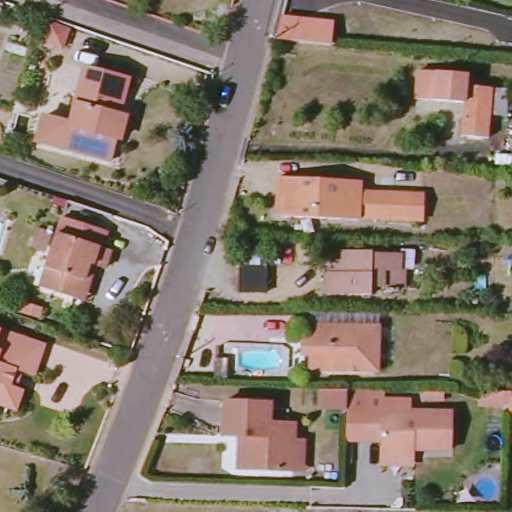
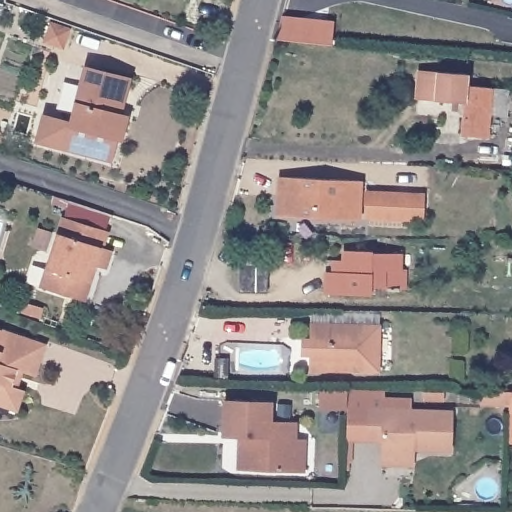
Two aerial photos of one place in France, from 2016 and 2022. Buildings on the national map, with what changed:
unchanged [(77,31),(80,33),(74,51),(55,45),(62,26),(77,31)]
unchanged [(490,134),(465,133),(465,104),(415,100),(419,70),(465,75),(466,84),(492,86),(512,87),(512,109),(512,116),(491,116),(490,134)]
unchanged [(124,83),(112,119),(127,123),(119,144),(69,128),(88,71),(124,83)]
unchanged [(280,178),(363,183),(362,222),(279,217),(280,178)]
unchanged [(421,222),(405,222),(369,219),(368,191),(405,194),(422,196),(421,222)]
unchanged [(80,296),(42,282),(52,254),(59,237),(67,215),(111,231),(105,245),(114,249),(112,255),(107,267),(99,264),(97,269),(87,299),(80,296)]
unchanged [(325,270),(339,270),(338,255),(404,255),(402,291),(325,292),(325,270)]
unchanged [(264,270),(263,299),(236,300),(237,271),(264,270)]
unchanged [(379,325),(376,368),(309,366),(310,350),(300,350),(301,337),(310,337),(310,323),(379,325)]
unchanged [(50,343),(41,372),(24,366),(19,379),(0,373),(0,327),(50,343)]
unchanged [(17,381),(33,388),(24,409),(0,401),(0,373),(19,379),(17,381)]
unchanged [(512,445),(508,445),(509,408),(480,407),(480,390),(512,391),(512,445)]
unchanged [(318,391),(385,392),(386,402),(412,403),(412,409),(365,408),(364,443),(345,443),(345,410),(317,411),(318,391)]
unchanged [(382,455),(381,444),(364,443),(365,408),(412,409),(454,410),(452,455),(382,455)]
unchanged [(302,474),(292,474),(240,471),(240,437),(222,436),(224,409),(270,409),(270,427),(294,428),(294,446),(304,446),(302,474)]

